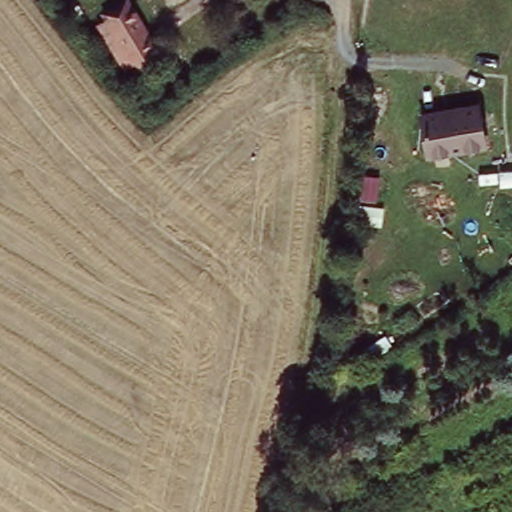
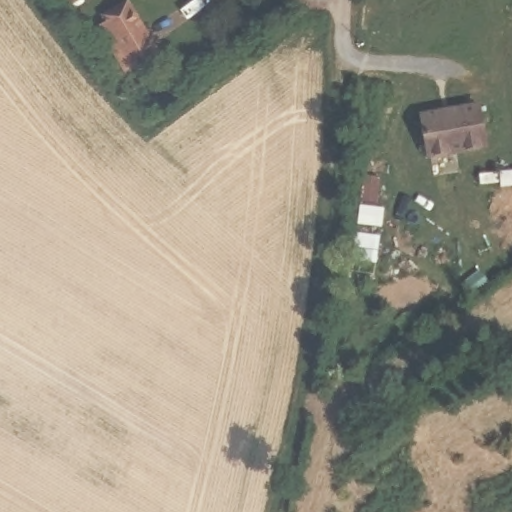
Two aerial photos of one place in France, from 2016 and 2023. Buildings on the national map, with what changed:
unchanged [(165,52),(144,64),(115,17),(134,5),(165,52)]
unchanged [(490,149),(426,158),(418,110),(479,100),(490,149)]

